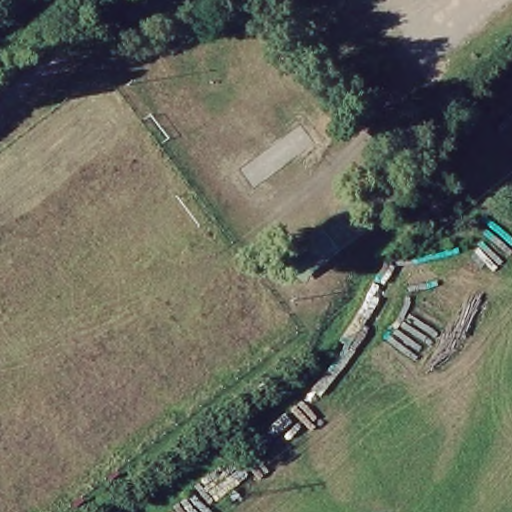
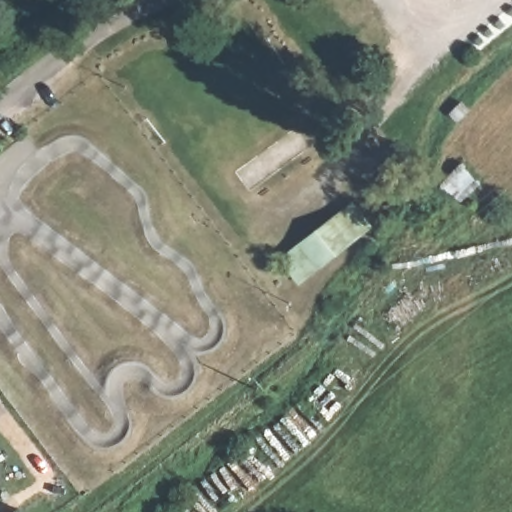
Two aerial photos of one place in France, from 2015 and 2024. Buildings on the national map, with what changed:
unchanged [(358,247),(306,283),(286,240),(341,207),(358,247)]

